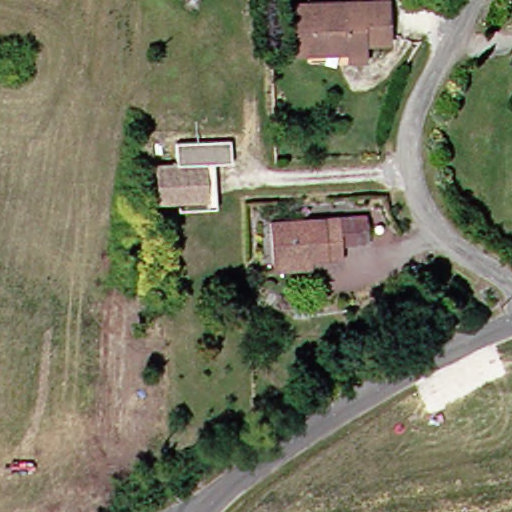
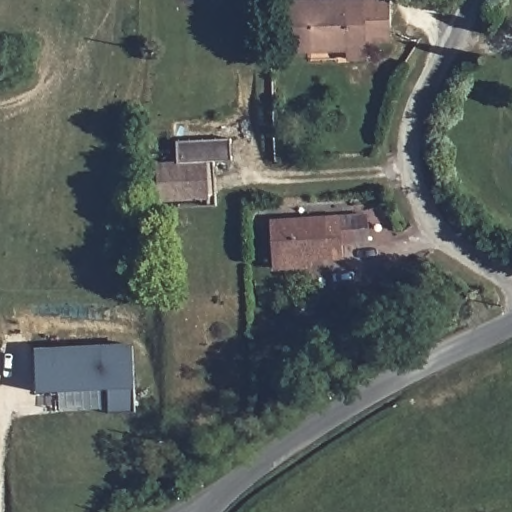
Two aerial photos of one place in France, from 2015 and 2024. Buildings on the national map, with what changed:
unchanged [(314,0),(396,0),(396,32),(372,34),(373,57),(354,58),(353,42),(317,44),(317,51),(300,52),(298,1),(314,0)]
unchanged [(155,215),(154,177),(175,177),(175,156),(203,157),(230,157),(229,180),(205,179),(204,215),(202,215),(155,215)]
unchanged [(377,214),(380,240),(353,242),(353,256),(285,262),(282,221),(377,214)]
new [(135,412),(109,413),(107,391),(37,395),(35,351),(131,345),(135,412)]

